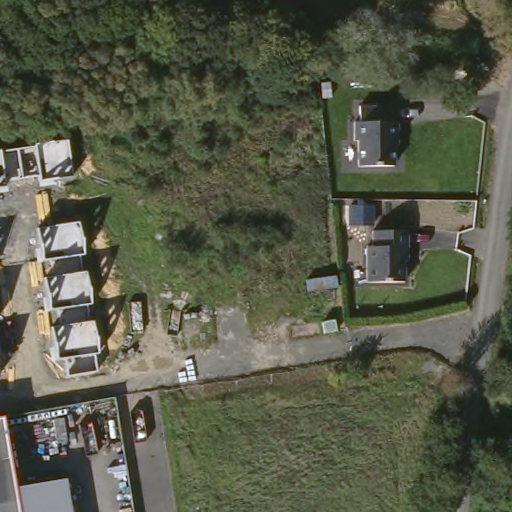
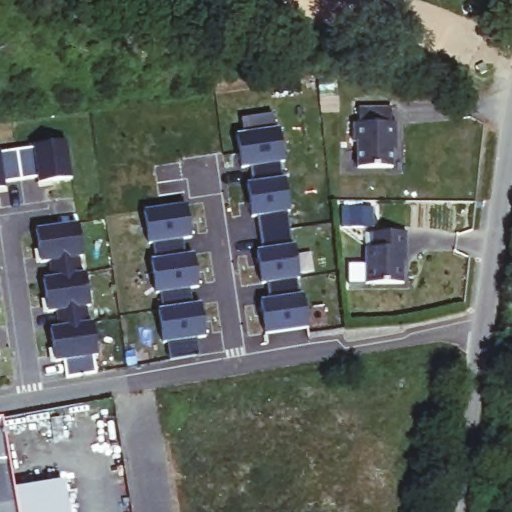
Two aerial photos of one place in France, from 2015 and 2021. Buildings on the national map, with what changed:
unchanged [(359,165),(359,107),(392,106),(393,121),(401,121),(397,165),(359,165)]
new [(273,114),(277,127),(280,127),(285,161),(279,162),(280,176),(285,175),(290,211),(286,212),(290,245),(296,244),(300,277),(297,278),(300,293),(303,293),(309,328),(267,334),(260,300),(270,298),(268,284),(263,284),(258,250),(264,249),(259,218),(252,219),(246,182),(253,181),(251,167),(243,169),(237,134),(244,132),(243,120),(273,114)]
unchanged [(5,181),(6,187),(0,187),(0,149),(68,141),(73,178),(39,181),(39,176),(5,181)]
new [(166,342),(160,342),(155,307),(163,306),(160,292),(156,292),(150,257),(156,256),(153,242),(149,243),(144,209),(187,203),(192,239),(183,240),(184,252),(194,251),(200,287),(190,288),(193,303),(199,302),(207,337),(194,340),(198,357),(169,361),(166,342)]
unchanged [(64,359),(54,361),(49,327),(60,325),(58,310),(46,311),(42,277),(52,276),(50,260),(39,261),(35,227),(79,222),(99,354),(94,355),(96,372),(67,378),(64,359)]
unchanged [(365,282),(367,249),(372,250),(374,232),(412,234),(404,284),(365,282)]
unchanged [(9,481),(58,475),(63,512),(0,512),(0,425),(1,425),(9,481)]

